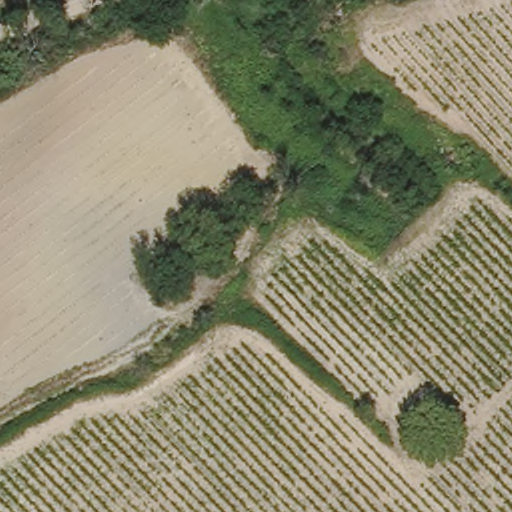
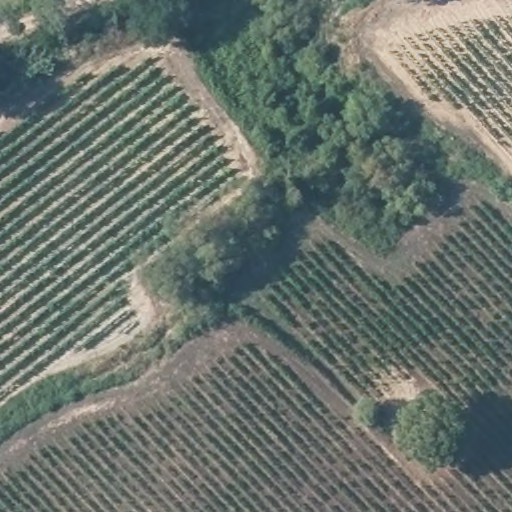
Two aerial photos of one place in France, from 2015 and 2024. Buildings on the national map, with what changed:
unchanged [(408,431),(430,411),(447,430),(424,450),(408,431)]

